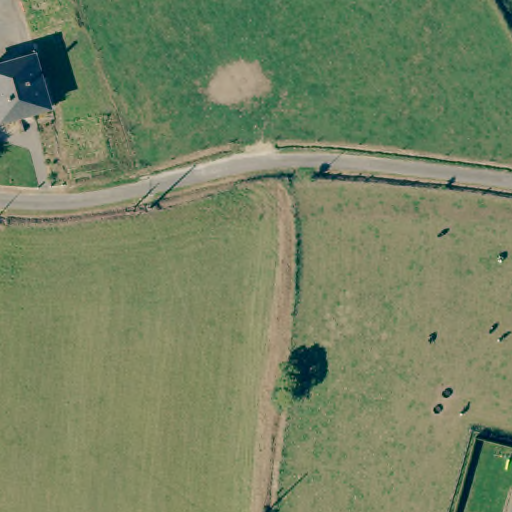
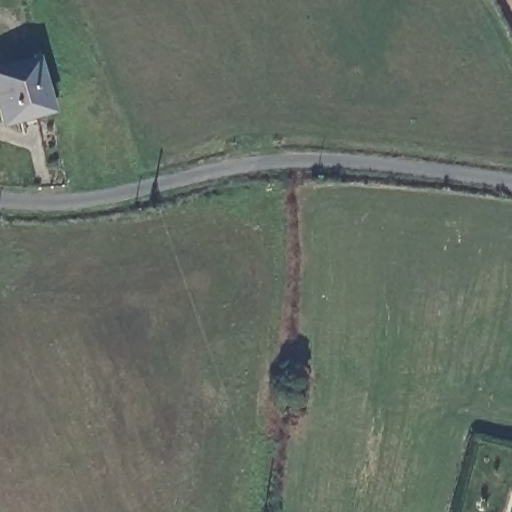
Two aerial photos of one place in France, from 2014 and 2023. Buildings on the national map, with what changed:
unchanged [(0,118),(0,66),(30,57),(44,107),(0,118)]

